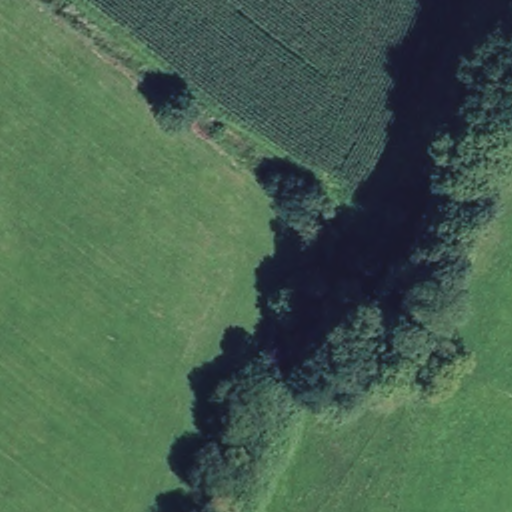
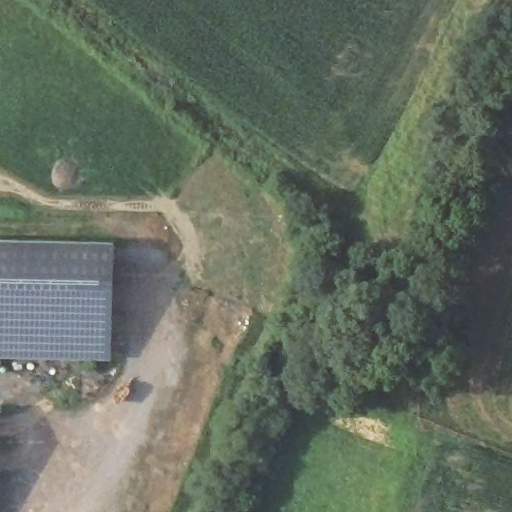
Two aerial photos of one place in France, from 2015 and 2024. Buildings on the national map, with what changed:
new [(111,356),(0,353),(0,238),(114,240),(111,356)]

